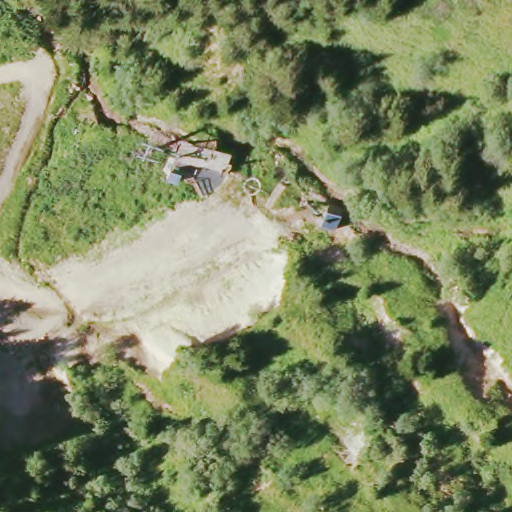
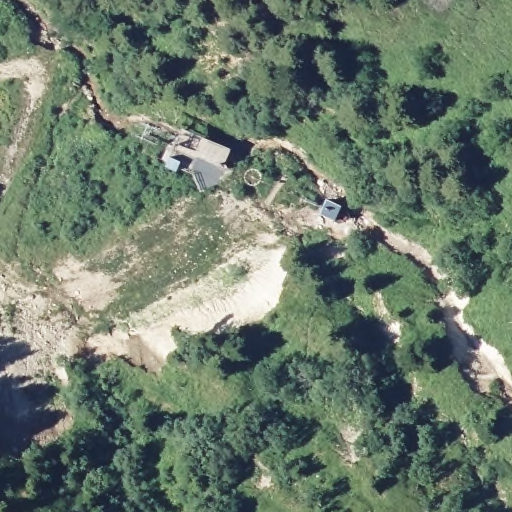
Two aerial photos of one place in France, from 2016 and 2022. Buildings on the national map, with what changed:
unchanged [(185,130),(231,150),(224,168),(197,156),(190,174),(170,165),(172,159),(185,130)]
unchanged [(327,200),(341,208),(335,222),(320,216),(327,200)]

